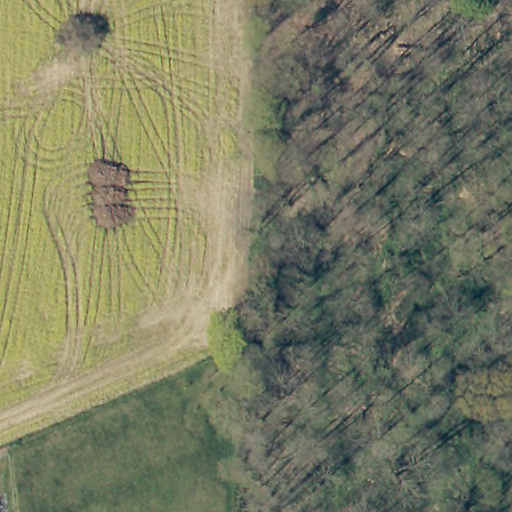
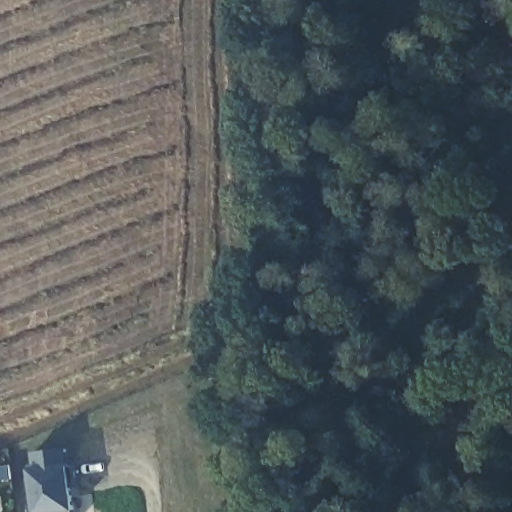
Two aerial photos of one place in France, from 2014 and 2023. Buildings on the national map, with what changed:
new [(66,448),(68,465),(76,465),(79,485),(71,486),(75,511),(76,512),(34,512),(28,468),(34,467),(32,453),(66,448)]

